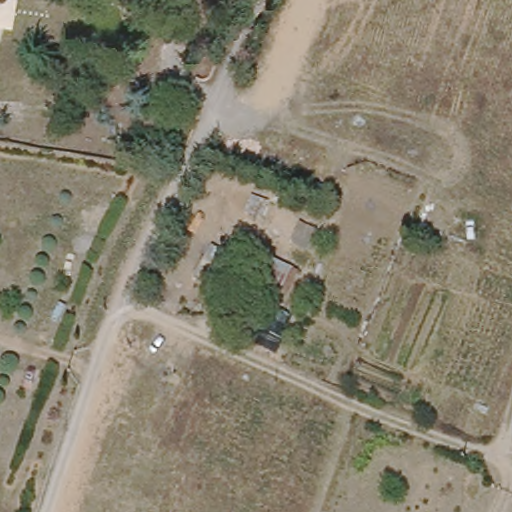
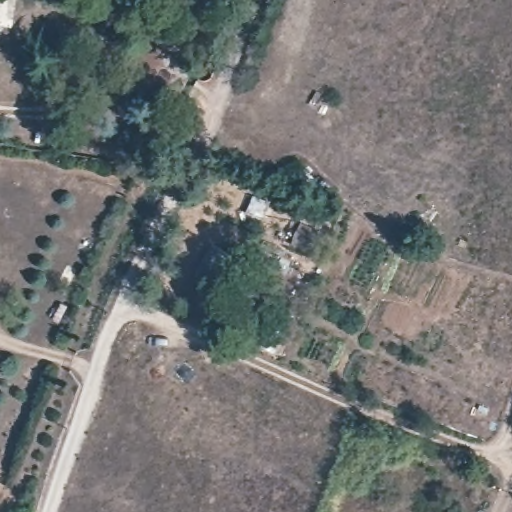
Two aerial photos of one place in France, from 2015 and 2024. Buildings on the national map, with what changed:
unchanged [(213,246),(228,254),(211,283),(197,274),(213,246)]

